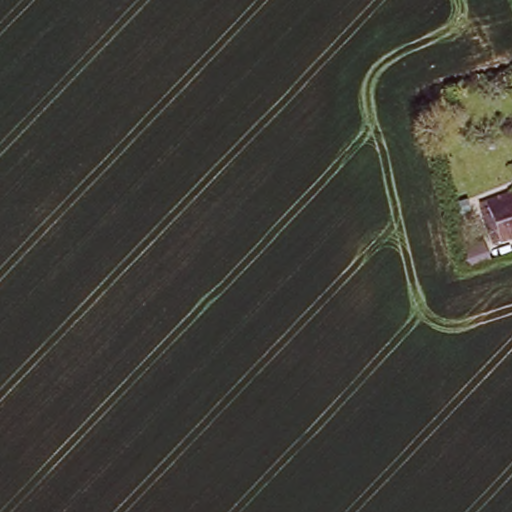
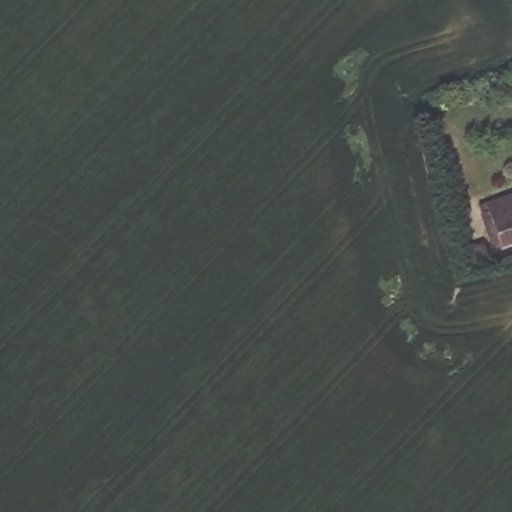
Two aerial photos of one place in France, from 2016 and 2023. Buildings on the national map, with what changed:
unchanged [(500,237),(487,194),(512,186),(512,233),(500,237)]

